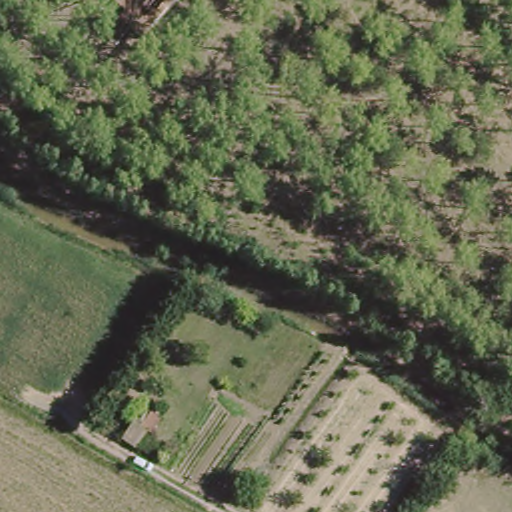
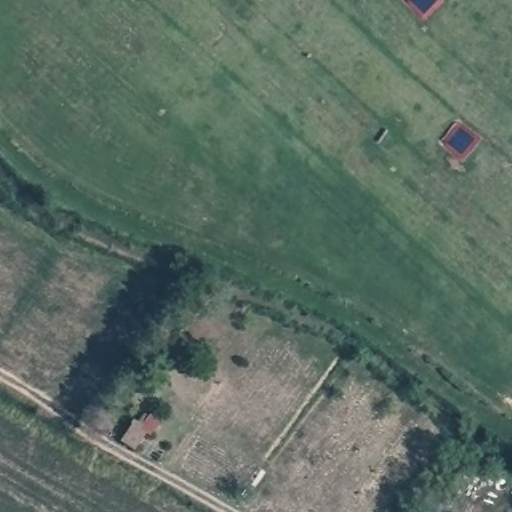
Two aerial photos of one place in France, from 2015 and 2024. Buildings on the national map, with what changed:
unchanged [(122,440),(133,424),(143,431),(134,447),(122,440)]

